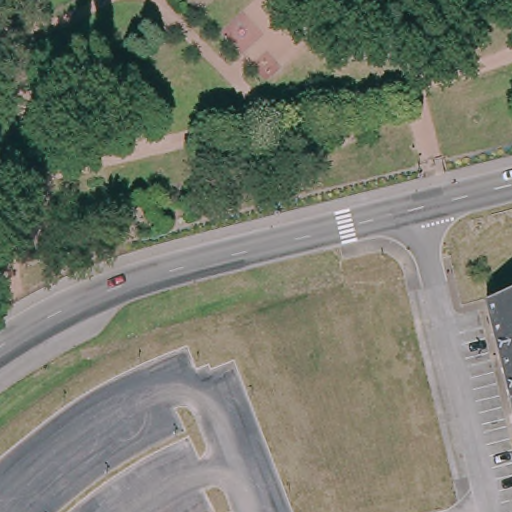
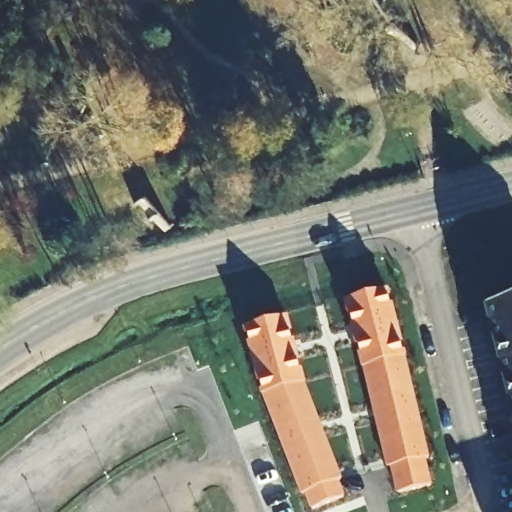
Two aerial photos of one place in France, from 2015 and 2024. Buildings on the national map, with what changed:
new [(429,458),(425,459),(431,486),(396,494),(390,468),(385,469),(344,301),(388,289),(429,458)]
unchanged [(512,308),(512,409),(489,314),(512,308)]
new [(306,383),(343,478),(337,481),(345,496),(311,510),(304,494),(300,495),(260,394),(244,328),(290,315),(306,383)]

